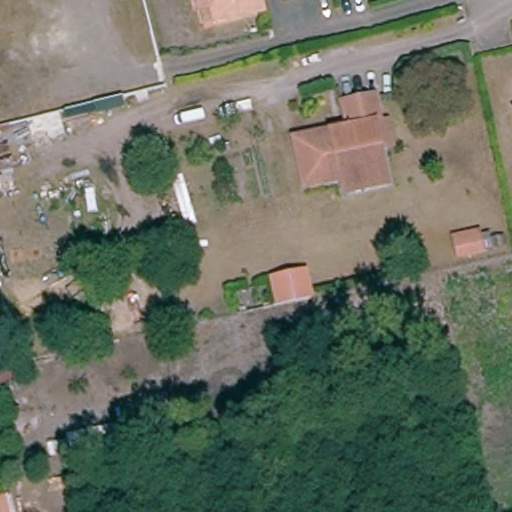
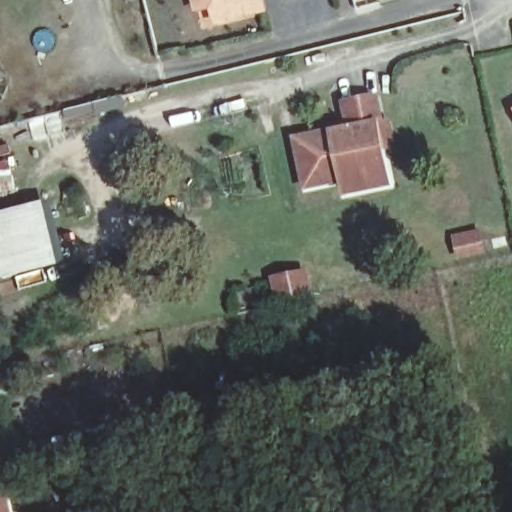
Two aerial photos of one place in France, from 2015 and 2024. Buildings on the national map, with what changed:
unchanged [(218,7),(204,10),(201,0),(265,0),(265,2),(268,11),(245,17),(220,22),(218,7)]
unchanged [(340,104),(372,98),(378,127),(383,126),(388,149),(377,151),(384,186),(340,195),(337,180),(304,187),(294,138),(344,127),(340,104)]
new [(0,277),(0,275),(0,213),(45,202),(60,265),(0,277)]

